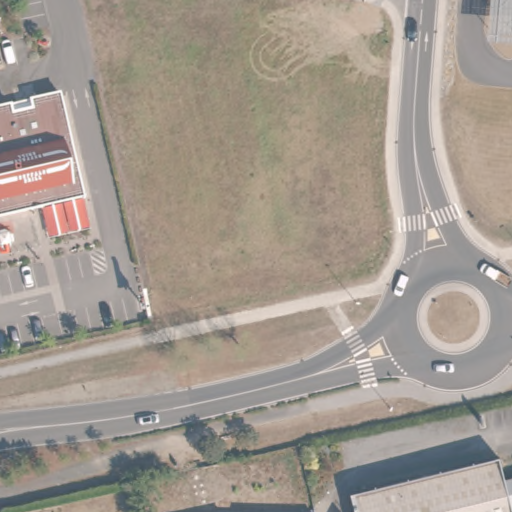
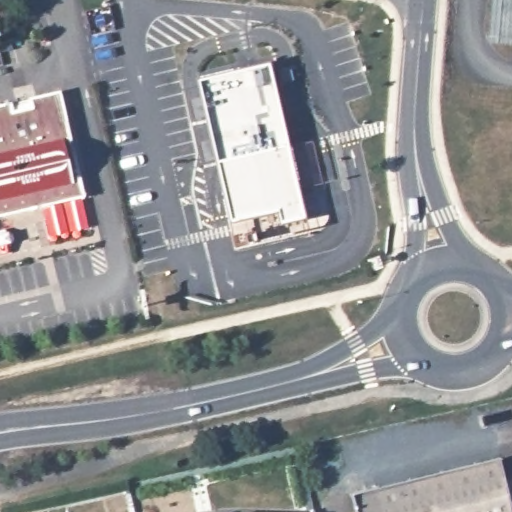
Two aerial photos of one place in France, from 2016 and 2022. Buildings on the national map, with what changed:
unchanged [(486,46),(490,0),(512,0),(512,49),(486,46)]
new [(267,59),(309,223),(276,232),(271,213),(230,224),(192,79),(267,59)]
unchanged [(87,196),(0,218),(0,109),(61,93),(87,196)]
unchanged [(353,496),(500,460),(505,483),(512,481),(512,512),(356,512),(353,496)]

